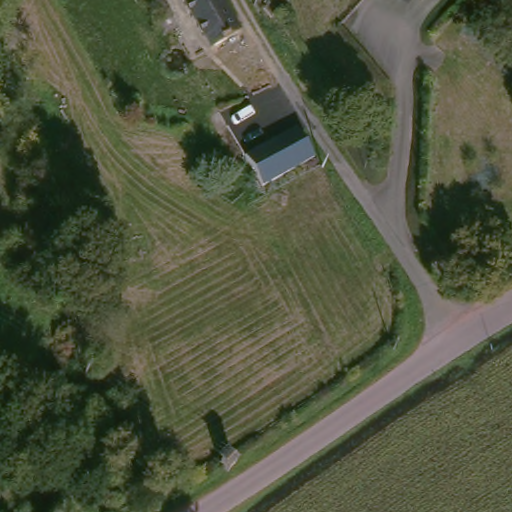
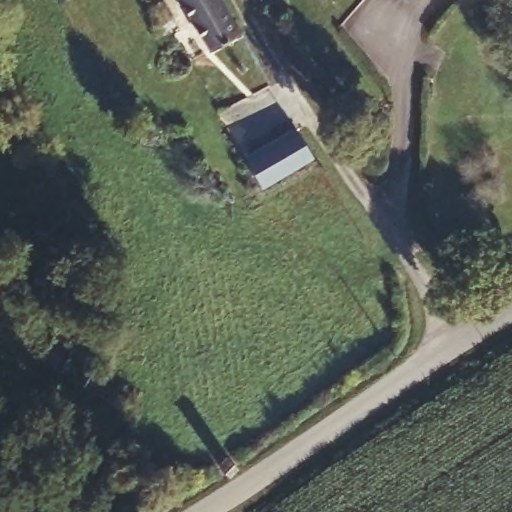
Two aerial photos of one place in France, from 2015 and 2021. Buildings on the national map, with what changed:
unchanged [(185,0),(225,0),(240,29),(210,45),(185,0)]
unchanged [(264,185),(247,154),(264,145),(300,125),(302,130),(317,156),(264,185)]

